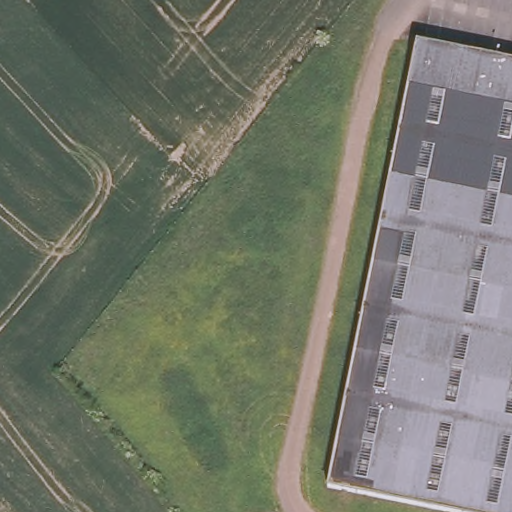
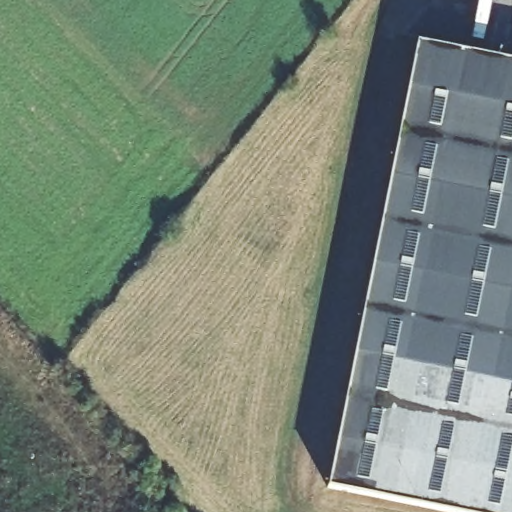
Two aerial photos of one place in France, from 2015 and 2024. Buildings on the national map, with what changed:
unchanged [(512,512),(457,512),(328,484),(421,42),(512,61),(512,512)]

